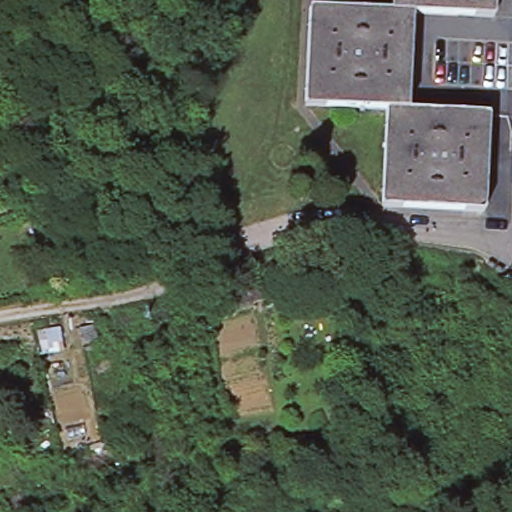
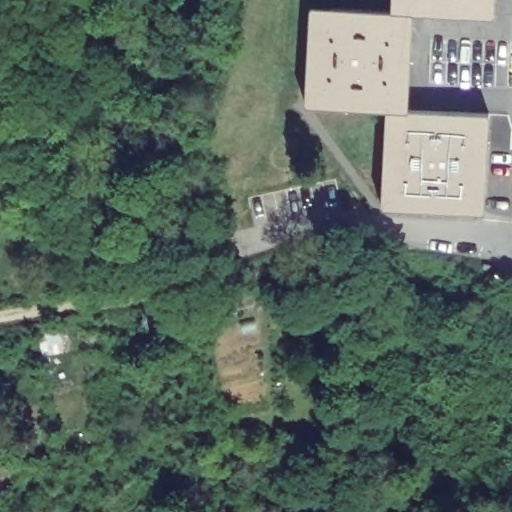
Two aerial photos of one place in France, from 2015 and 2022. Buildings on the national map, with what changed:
unchanged [(405,11),(387,10),(387,0),(490,0),(489,18),(405,11)]
unchanged [(300,101),(306,4),(387,10),(405,11),(399,109),(380,107),(300,101)]
unchanged [(399,109),(482,115),(475,211),(374,205),(380,107),(399,109)]
unchanged [(273,277),(278,293),(227,307),(224,286),(273,277)]

